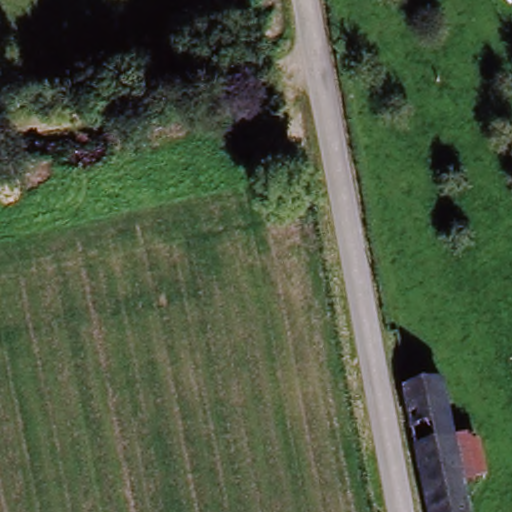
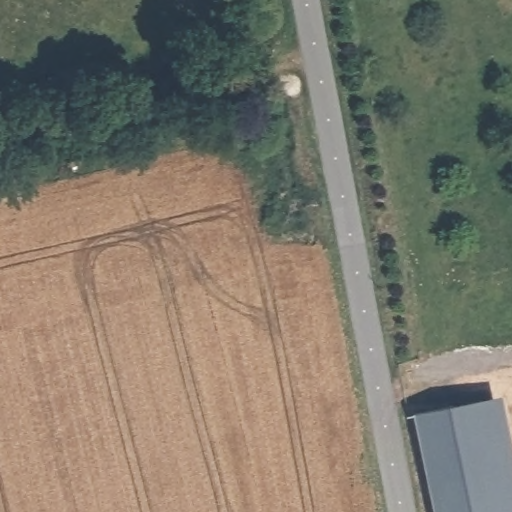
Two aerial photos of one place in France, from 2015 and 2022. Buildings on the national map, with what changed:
demolished [(429,512),(405,398),(442,390),(454,449),(462,488),(467,512),(429,512)]
new [(512,451),(512,512),(433,512),(412,415),(500,395),(512,451)]

